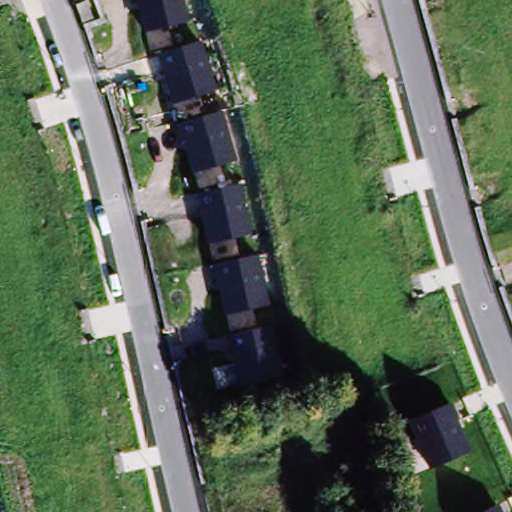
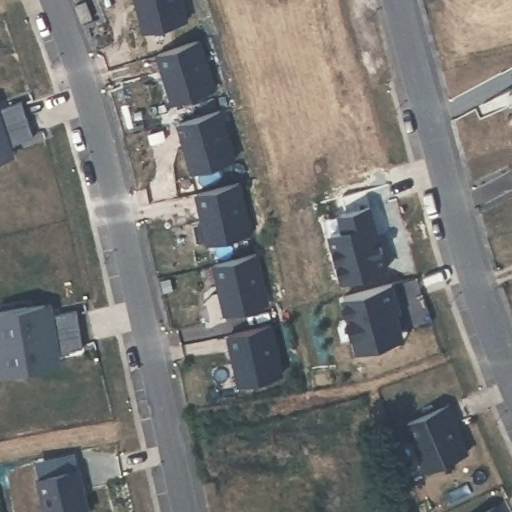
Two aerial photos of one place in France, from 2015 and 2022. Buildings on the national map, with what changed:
unchanged [(146,33),(137,0),(185,0),(190,21),(146,33)]
unchanged [(218,92),(172,105),(157,55),(203,41),(218,92)]
new [(24,101),(30,119),(0,128),(0,106),(1,108),(24,101)]
unchanged [(239,161),(190,175),(177,123),(222,110),(239,161)]
new [(0,160),(0,128),(30,119),(36,136),(12,144),(16,155),(11,156),(0,160)]
unchanged [(255,234),(207,244),(196,194),(242,183),(255,234)]
unchanged [(271,307),(225,314),(214,262),(258,252),(271,307)]
new [(346,304),(396,290),(401,308),(397,309),(405,338),(400,346),(360,357),(356,341),(345,344),(342,329),(352,327),(346,304)]
new [(54,313),(78,309),(81,328),(0,341),(0,311),(47,303),(52,302),(54,313)]
unchanged [(285,378),(240,387),(229,333),(273,323),(285,378)]
new [(5,371),(0,344),(0,341),(81,328),(84,347),(60,351),(62,362),(57,363),(5,371)]
unchanged [(428,470),(405,423),(449,402),(472,450),(428,470)]
new [(75,449),(80,467),(52,474),(47,456),(75,449)]
new [(80,467),(91,510),(81,512),(49,512),(40,477),(80,467)]
unchanged [(497,505),(501,512),(484,512),(497,505)]

